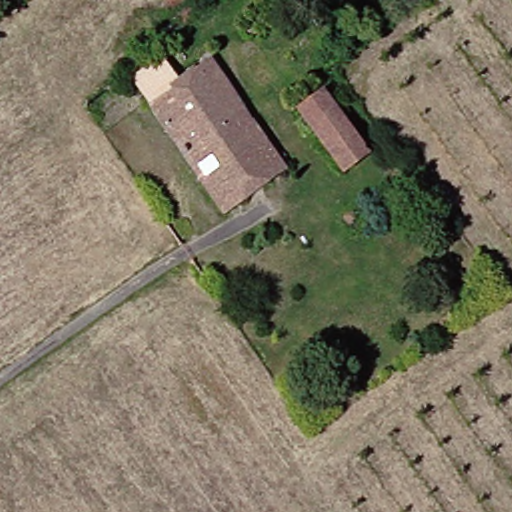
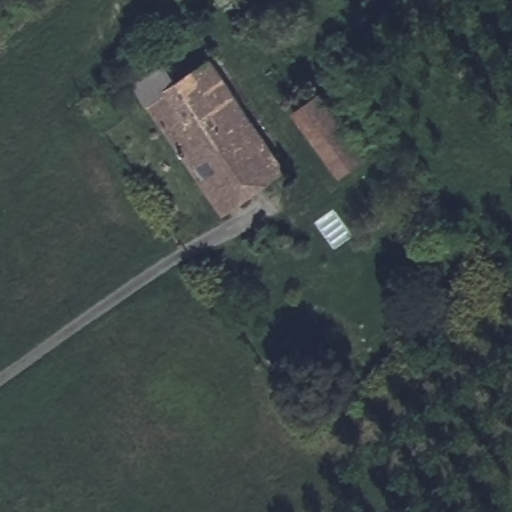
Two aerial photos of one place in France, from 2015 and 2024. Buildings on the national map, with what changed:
unchanged [(180,77),(214,54),(258,119),(211,150),(221,166),(205,177),(135,76),(165,56),(180,77)]
unchanged [(371,149),(346,167),(300,105),(325,86),(371,149)]
unchanged [(290,165),(228,208),(226,209),(205,177),(221,166),(211,150),(258,119),(290,165)]

